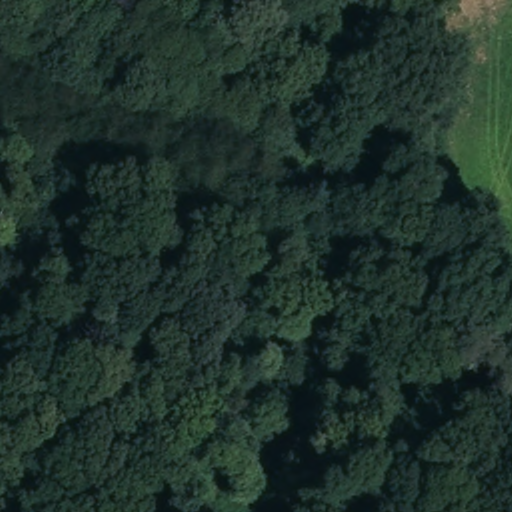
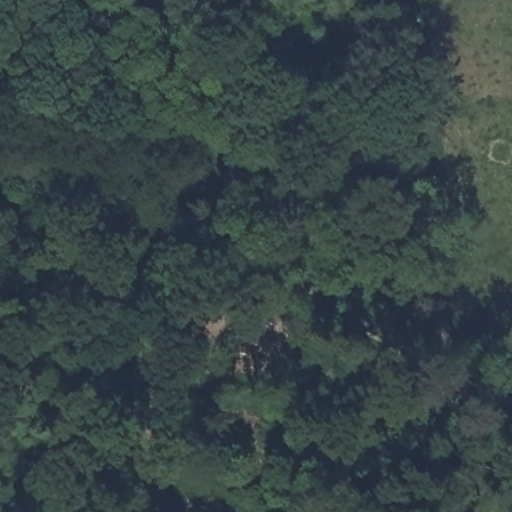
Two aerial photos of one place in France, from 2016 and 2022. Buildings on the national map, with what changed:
[]

